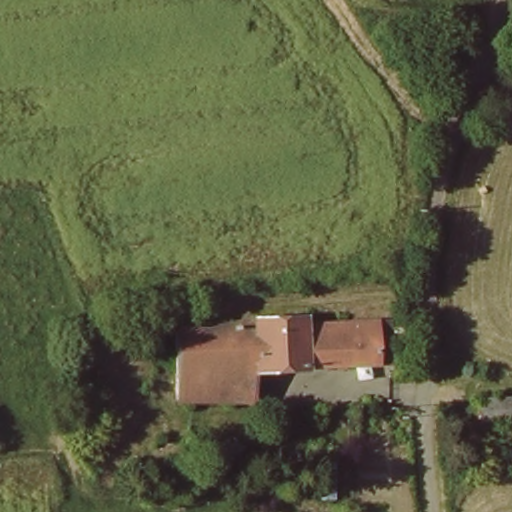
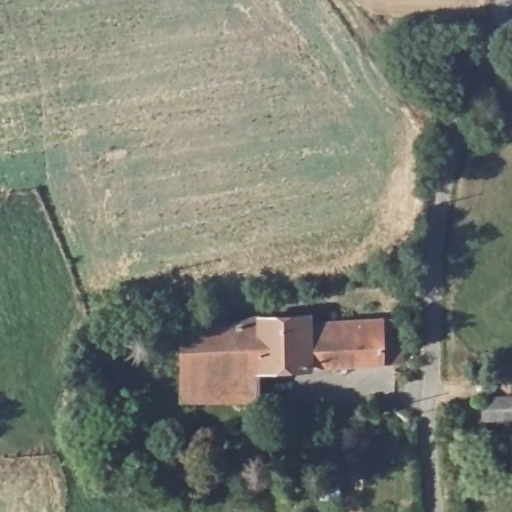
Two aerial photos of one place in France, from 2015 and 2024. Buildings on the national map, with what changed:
unchanged [(260,324),(307,323),(307,330),(328,329),(329,367),(259,370),(260,324)]
unchanged [(256,370),(235,371),(237,329),(252,325),(260,324),(259,370),(256,370)]
unchanged [(379,364),(379,366),(329,367),(328,329),(397,327),(398,347),(398,363),(379,364)]
unchanged [(214,372),(214,404),(180,406),(180,337),(209,337),(237,329),(235,371),(214,372)]
unchanged [(257,400),(214,404),(214,372),(235,371),(256,370),(257,400)]
unchanged [(483,398),(512,397),(512,420),(484,421),(483,398)]
unchanged [(333,491),(316,489),(321,443),(339,445),(333,491)]

